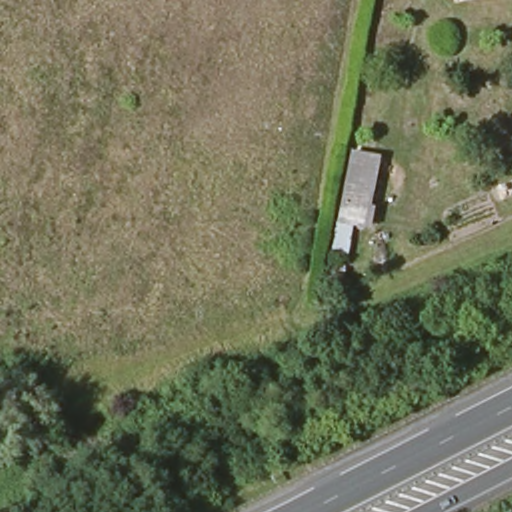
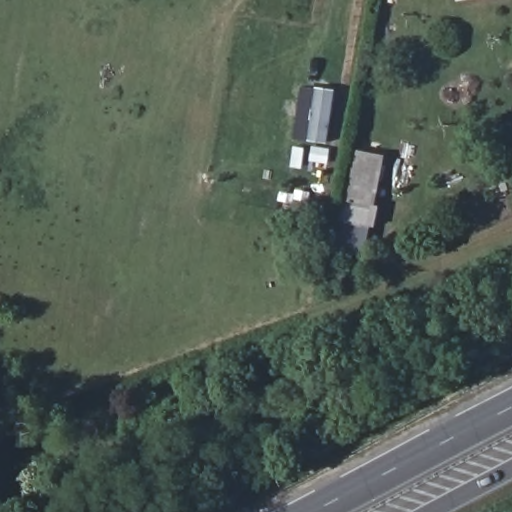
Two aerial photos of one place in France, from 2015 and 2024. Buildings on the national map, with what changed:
new [(325,144),(292,139),(300,86),(333,91),(325,144)]
unchanged [(373,231),(357,230),(352,253),(337,251),(360,146),(388,154),(373,231)]

